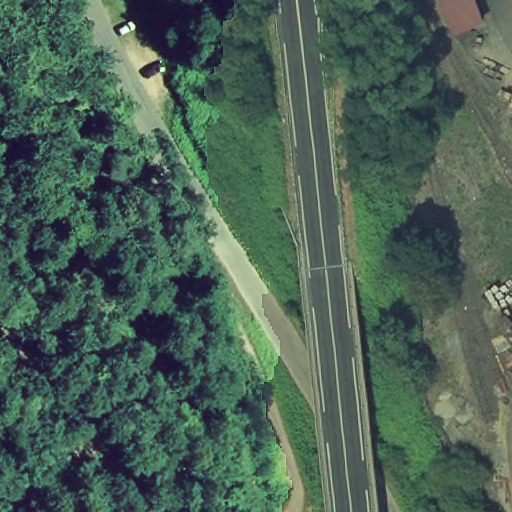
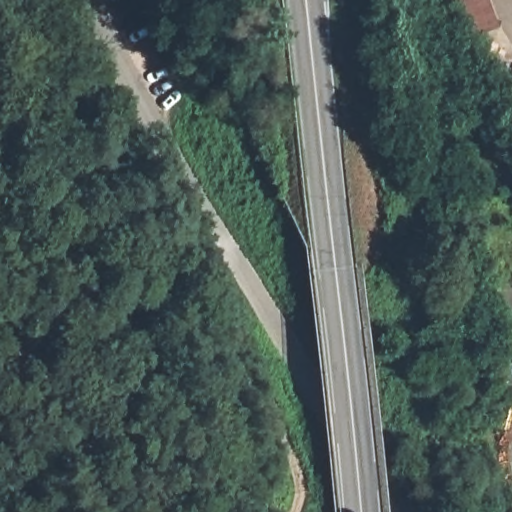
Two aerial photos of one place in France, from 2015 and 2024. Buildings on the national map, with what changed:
unchanged [(472,41),(456,0),(489,0),(500,32),(472,41)]

